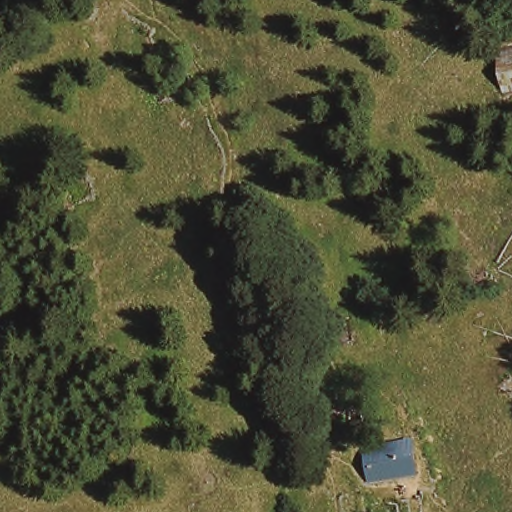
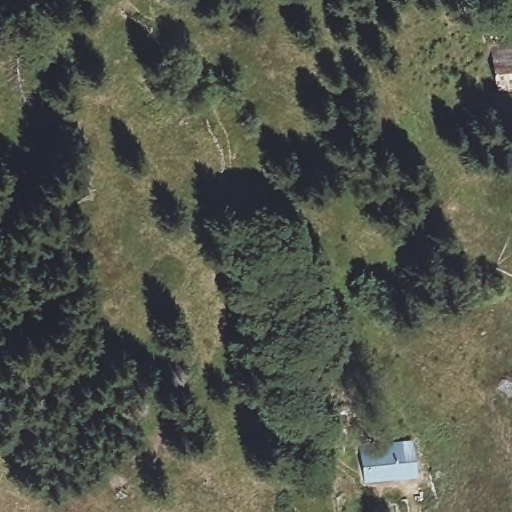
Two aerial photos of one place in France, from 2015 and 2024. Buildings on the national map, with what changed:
unchanged [(494,54),(512,50),(512,89),(500,92),(494,54)]
unchanged [(360,447),(412,440),(415,475),(363,480),(360,447)]

